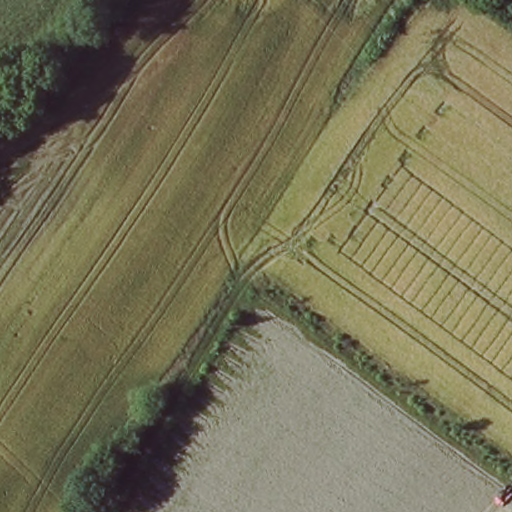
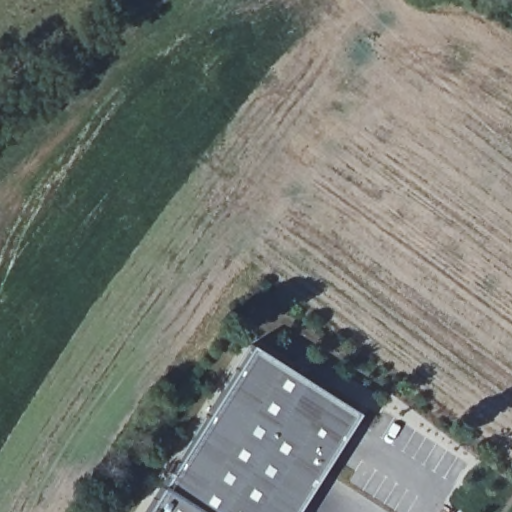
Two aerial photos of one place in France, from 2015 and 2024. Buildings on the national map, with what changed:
new [(359,412),(293,512),(144,512),(251,344),(359,412)]

